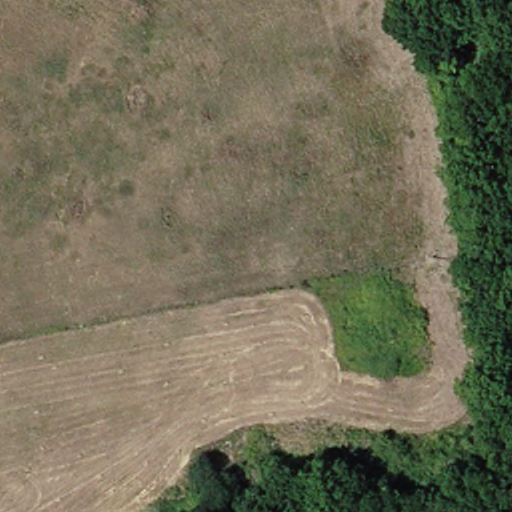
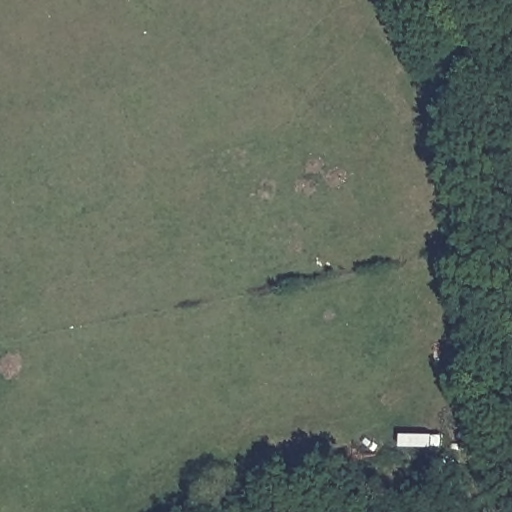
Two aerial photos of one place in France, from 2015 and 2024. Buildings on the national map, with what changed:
[]

